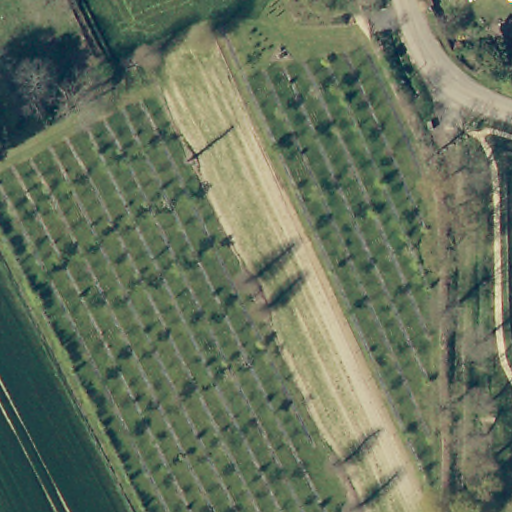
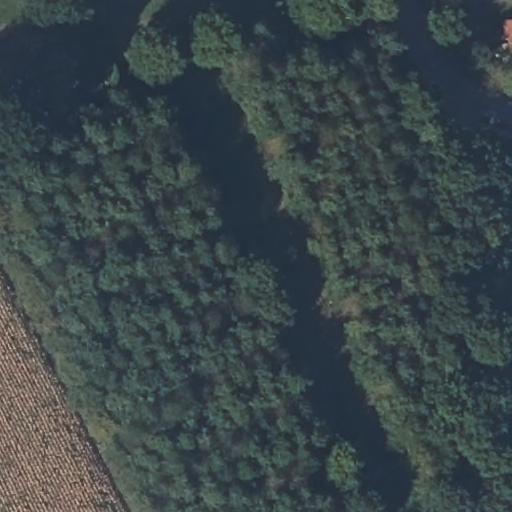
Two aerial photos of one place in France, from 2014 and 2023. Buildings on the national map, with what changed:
unchanged [(509,23),(512,23),(512,49),(509,23)]

